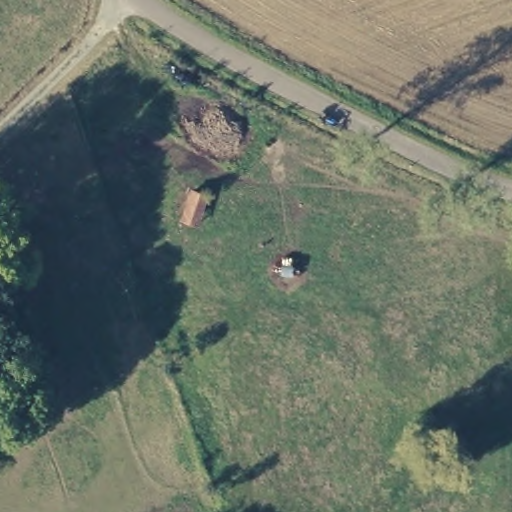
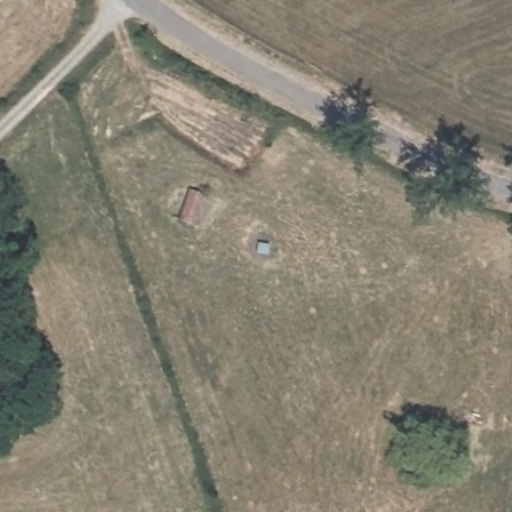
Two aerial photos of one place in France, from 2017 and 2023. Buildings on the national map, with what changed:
unchanged [(212,198),(202,229),(178,221),(190,188),(212,198)]

